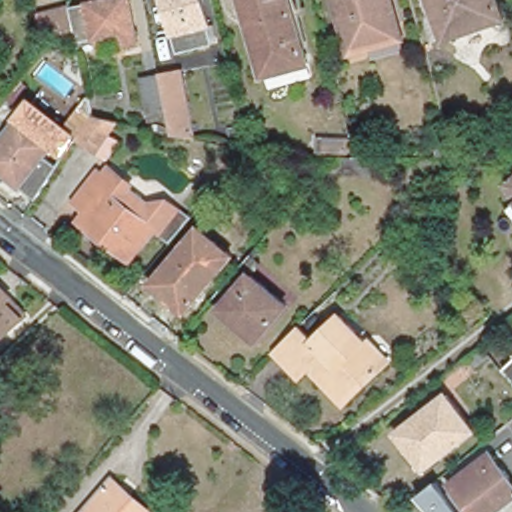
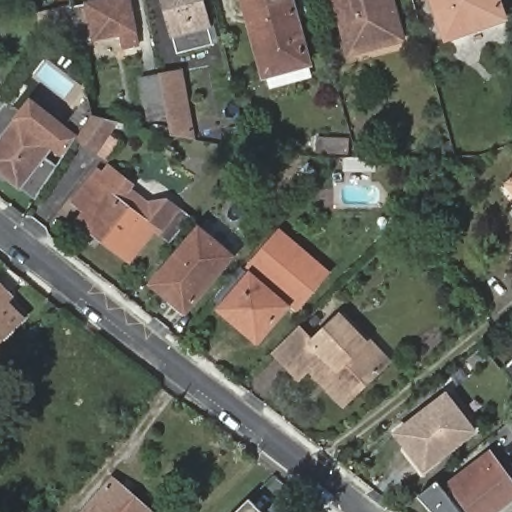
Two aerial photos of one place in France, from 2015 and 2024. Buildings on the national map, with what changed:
unchanged [(60,35),(57,31),(41,35),(39,28),(37,16),(72,7),(114,0),(129,0),(137,46),(124,48),(122,35),(77,41),(76,31),(60,35)]
unchanged [(206,27),(211,44),(184,50),(181,33),(172,35),(163,0),(202,0),(210,26),(206,27)]
unchanged [(247,0),(292,0),(310,65),(270,75),(247,0)]
unchanged [(370,48),(352,52),(337,0),(391,0),(392,5),(397,5),(402,27),(406,39),(370,48)]
unchanged [(435,0),(496,0),(503,21),(447,37),(435,0)]
unchanged [(167,104),(146,107),(141,79),(161,74),(182,70),(196,138),(174,135),(168,107),(167,104)]
unchanged [(58,130),(82,99),(85,115),(114,121),(105,135),(115,141),(102,161),(92,155),(69,140),(68,141),(59,156),(34,196),(31,200),(15,187),(0,176),(0,136),(26,104),(55,127),(58,130)]
unchanged [(354,143),(355,157),(330,159),(328,144),(354,143)]
unchanged [(92,172),(97,177),(104,169),(127,186),(124,190),(145,207),(148,203),(162,202),(175,212),(157,235),(150,230),(125,261),(74,222),(81,212),(69,203),(92,172)]
unchanged [(506,195),(512,190),(512,203),(506,195)]
new [(280,227),(331,270),(295,313),(287,307),(253,277),(244,269),(280,227)]
unchanged [(173,301),(154,286),(198,230),(231,257),(190,308),(187,312),(173,301)]
unchanged [(253,277),(287,307),(260,340),(224,309),(253,277)]
unchanged [(37,327),(30,334),(0,361),(0,291),(1,290),(20,310),(27,317),(37,327)]
unchanged [(313,365),(302,375),(277,348),(306,324),(318,338),(346,315),(389,365),(345,402),(331,386),(327,380),(313,365)]
unchanged [(473,370),(467,361),(483,348),(490,357),(473,370)]
unchanged [(403,431),(446,398),(472,432),(425,470),(412,453),(398,435),(403,431)]
unchanged [(452,497),(457,494),(453,489),(496,456),(512,477),(512,511),(510,512),(435,512),(427,501),(445,487),(452,497)]
unchanged [(113,485),(120,491),(132,500),(145,512),(88,512),(108,490),(113,485)]
new [(263,512),(235,512),(249,497),(263,512)]

